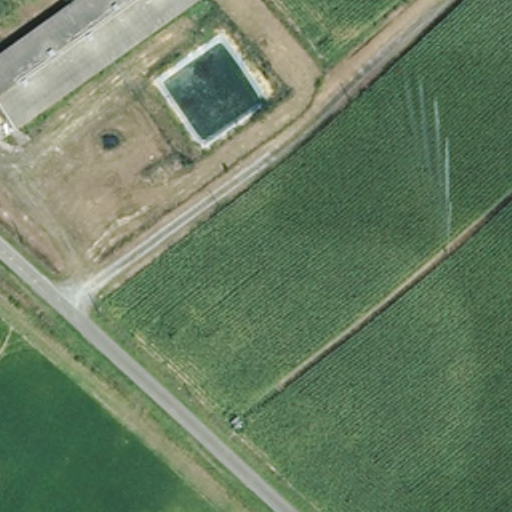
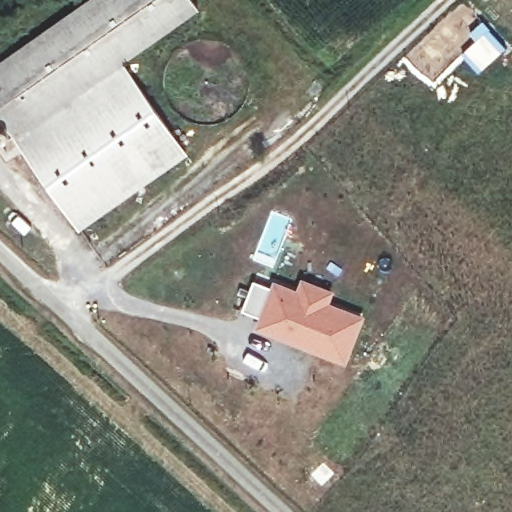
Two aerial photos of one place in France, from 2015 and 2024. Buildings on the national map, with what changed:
unchanged [(0,63),(87,0),(199,0),(204,6),(15,137),(0,112),(0,63)]
new [(187,155),(79,231),(15,137),(122,62),(187,155)]
new [(253,280),(271,286),(273,280),(297,288),(302,277),(335,290),(331,301),(365,316),(346,365),(255,330),(258,317),(242,311),(253,280)]

